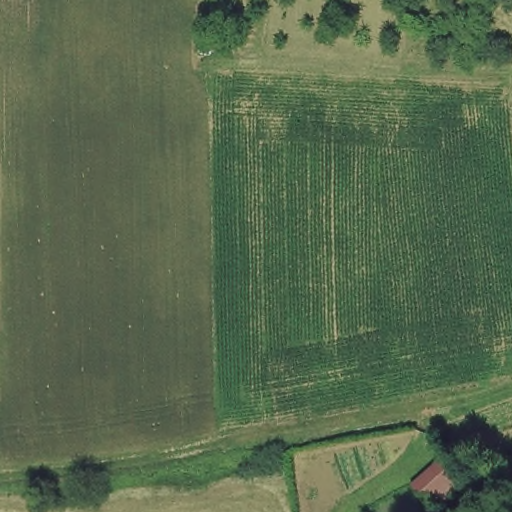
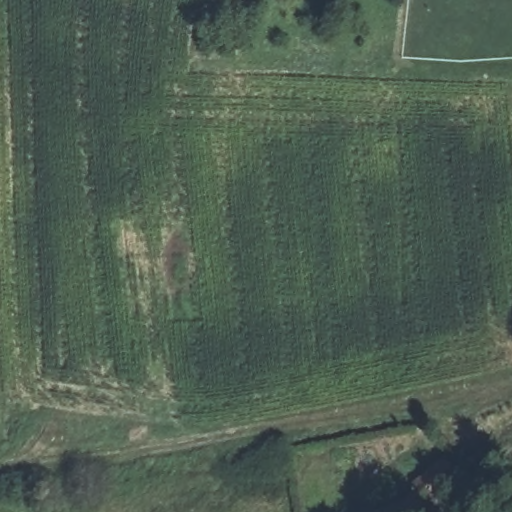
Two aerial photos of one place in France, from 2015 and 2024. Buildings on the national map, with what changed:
unchanged [(439,507),(418,480),(444,458),(464,484),(439,507)]

